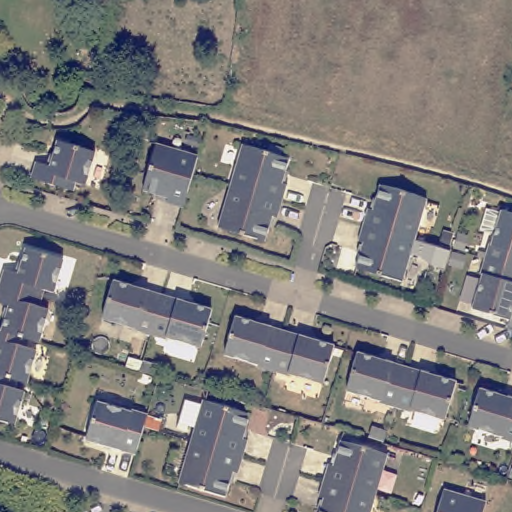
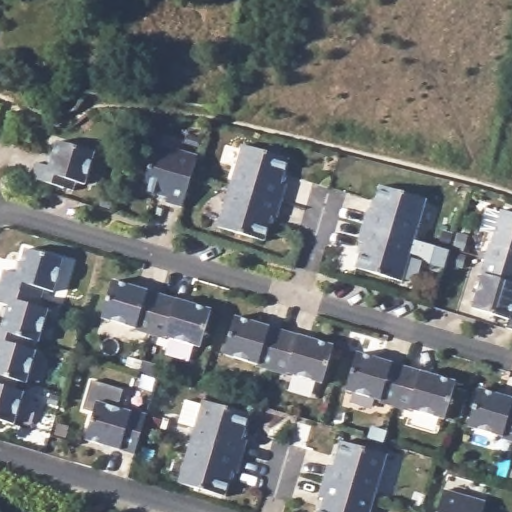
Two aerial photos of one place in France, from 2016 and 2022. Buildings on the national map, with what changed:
unchanged [(105,95),(105,84),(122,86),(121,97),(105,95)]
unchanged [(94,151),(85,183),(75,180),(72,189),(30,177),(35,161),(49,165),(56,140),(94,151)]
unchanged [(191,173),(181,206),(165,202),(167,197),(141,189),(155,143),(196,155),(191,173)]
unchanged [(241,144),(288,157),(280,183),(285,184),(280,200),(240,188),(229,185),(241,144)]
unchanged [(366,208),(371,210),(379,184),(420,197),(408,238),(377,229),(362,224),(366,208)]
unchanged [(240,188),(280,200),(276,216),(271,214),(263,240),(217,226),(229,185),(240,188)]
unchanged [(512,213),(512,267),(484,258),(488,242),(490,243),(500,209),(512,213)]
unchanged [(377,229),(408,238),(396,279),(355,267),(362,241),(357,240),(362,224),(377,229)]
unchanged [(16,273),(24,247),(62,259),(52,291),(43,288),(40,297),(35,295),(0,286),(0,279),(3,269),(16,273)]
unchanged [(512,267),(512,309),(509,319),(471,308),(481,274),(479,274),(484,258),(512,267)]
unchanged [(161,294),(150,334),(134,329),(134,327),(100,317),(112,279),(161,294)]
unchanged [(0,302),(0,286),(35,295),(40,297),(37,306),(47,309),(37,341),(28,338),(0,330),(0,328),(7,304),(0,302)]
unchanged [(210,308),(200,346),(166,336),(165,338),(150,334),(161,294),(210,308)]
unchanged [(283,330),(275,360),(271,370),(255,365),(256,363),(222,353),(234,315),(283,330)]
unchanged [(25,347),(35,350),(25,382),(16,379),(0,375),(0,330),(28,338),(25,347)]
unchanged [(333,345),(321,382),(288,373),(287,375),(271,370),(275,360),(283,330),(333,345)]
unchanged [(405,366),(394,406),(378,401),(378,399),(345,389),(356,351),(405,366)]
unchanged [(141,361),(156,365),(153,374),(139,370),(141,361)]
unchanged [(455,381),(444,419),(410,409),(410,411),(394,406),(405,366),(455,381)]
unchanged [(13,389),(23,391),(14,423),(0,420),(0,375),(16,379),(13,389)]
unchanged [(512,398),(512,441),(500,437),(500,435),(467,425),(478,388),(512,398)]
unchanged [(202,399),(249,413),(241,438),(245,440),(241,456),(190,440),(202,399)]
unchanged [(129,411),(130,409),(145,413),(142,426),(134,453),(85,439),(95,401),(129,411)]
unchanged [(241,456),(236,471),(231,470),(224,495),(177,481),(190,440),(241,456)]
unchanged [(327,464),(332,465),(340,440),(381,452),(369,493),(322,480),(327,464)]
unchanged [(363,512),(318,512),(322,497),(318,495),(322,480),(369,493),(363,512)]
unchanged [(483,512),(438,512),(444,491),(485,504),(483,512)]

